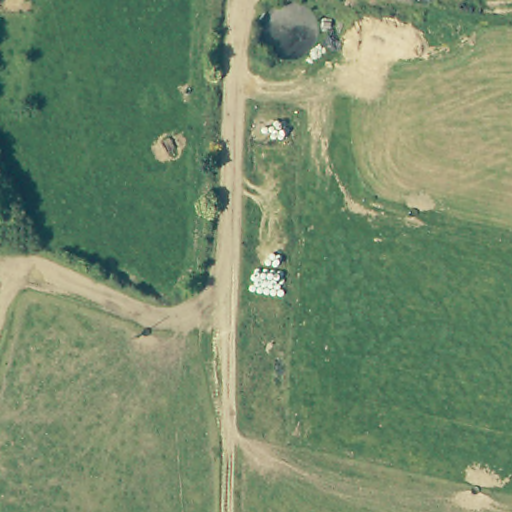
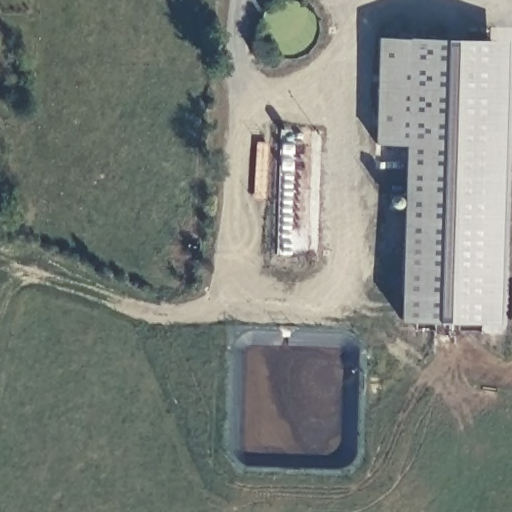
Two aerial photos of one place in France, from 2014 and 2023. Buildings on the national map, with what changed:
new [(377,37),(506,40),(498,323),(398,319),(403,143),(374,142),(377,37)]

